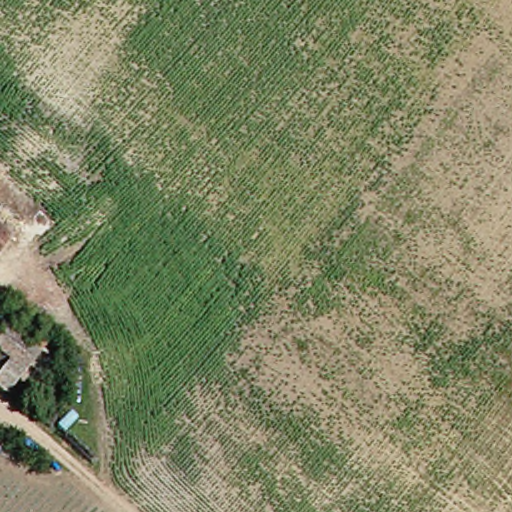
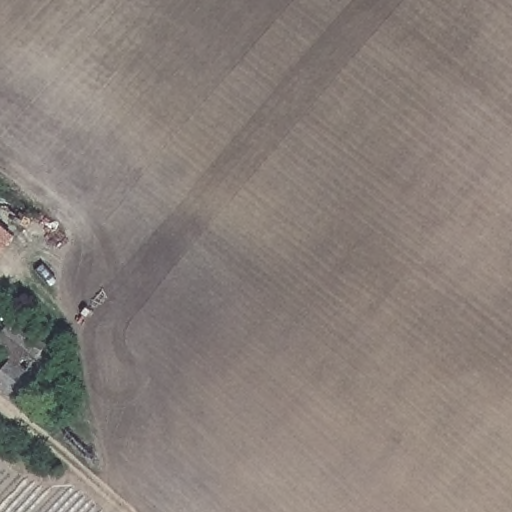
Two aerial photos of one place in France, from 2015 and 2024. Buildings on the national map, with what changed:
unchanged [(15,236),(0,254),(0,223),(15,236)]
unchanged [(3,372),(22,347),(34,357),(17,381),(3,372)]

